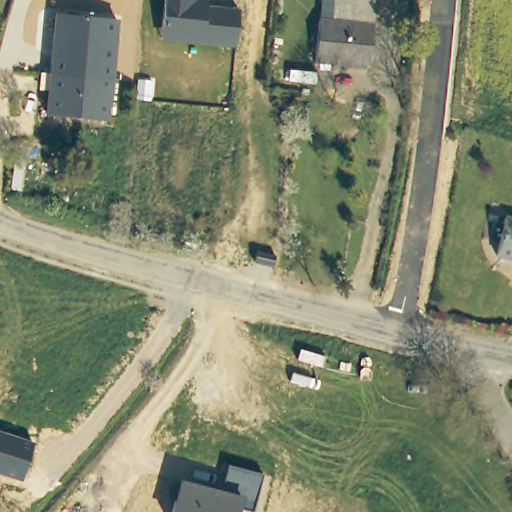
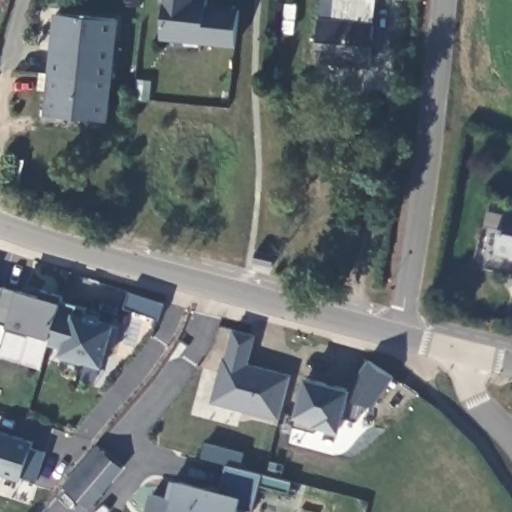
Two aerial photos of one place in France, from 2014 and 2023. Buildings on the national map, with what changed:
unchanged [(159,41),(165,0),(208,0),(207,6),(238,9),(235,47),(159,41)]
unchanged [(374,0),(371,25),(320,22),(323,0),(374,0)]
unchanged [(117,20),(111,81),(61,76),(50,75),(56,14),(117,20)]
unchanged [(373,26),(370,66),(315,62),(319,21),(320,22),(371,25),(373,26)]
unchanged [(50,75),(61,76),(111,81),(107,121),(46,115),(49,91),(41,90),(42,75),(50,75)]
unchanged [(512,222),(512,261),(495,257),(502,220),(512,222)]
new [(27,337),(5,332),(7,326),(0,323),(0,301),(0,287),(4,288),(17,291),(37,297),(40,292),(64,301),(53,339),(29,333),(27,337)]
new [(101,368),(60,357),(62,349),(51,346),(53,339),(64,301),(90,307),(87,317),(117,326),(101,368)]
new [(224,357),(225,357),(232,328),(256,335),(249,365),(291,375),(278,422),(212,403),(224,357)]
new [(351,390),(369,361),(394,378),(375,407),(363,403),(357,421),(344,418),(340,433),(315,427),(316,423),(296,418),(306,378),(351,390)]
unchanged [(21,481),(0,474),(0,431),(34,442),(21,481)]
new [(227,465),(201,458),(205,442),(245,453),(241,468),(227,465)]
unchanged [(124,467),(90,510),(61,489),(96,446),(124,467)]
unchanged [(178,480),(220,491),(227,465),(262,474),(251,512),(239,508),(238,512),(169,512),(178,480)]

